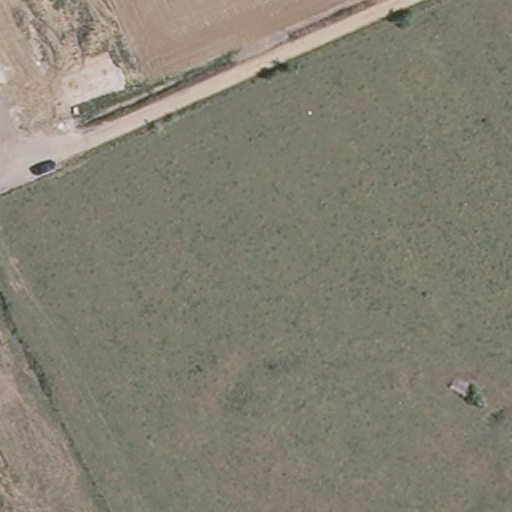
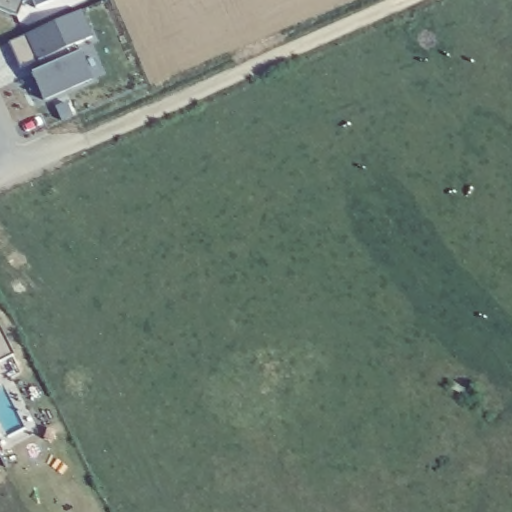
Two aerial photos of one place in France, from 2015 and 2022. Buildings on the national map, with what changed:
new [(20,19),(0,11),(0,1),(1,0),(33,0),(27,4),(20,19)]
new [(34,0),(61,0),(40,9),(34,0)]
new [(82,13),(95,40),(77,49),(81,59),(84,59),(93,81),(45,101),(34,76),(45,72),(41,64),(25,71),(10,44),(82,13)]
new [(0,362),(0,335),(10,357),(0,362)]

